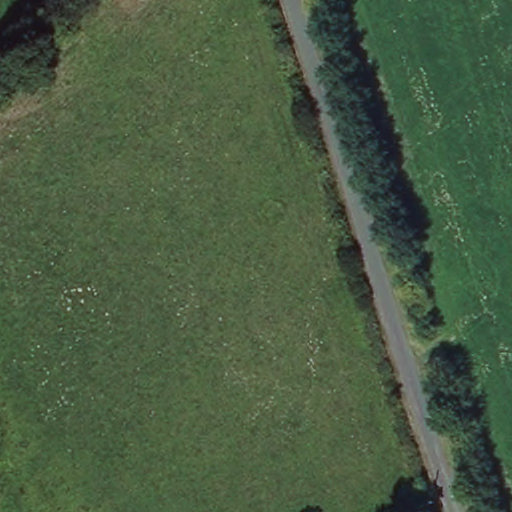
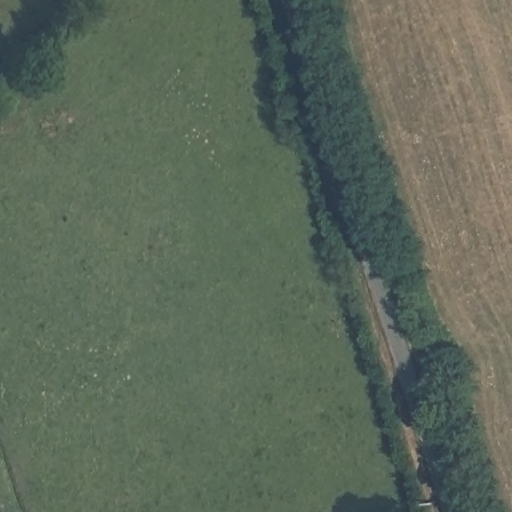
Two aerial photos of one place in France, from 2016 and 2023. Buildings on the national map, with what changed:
[]

